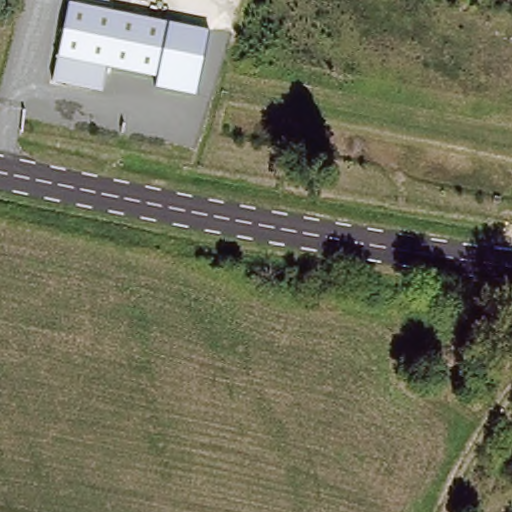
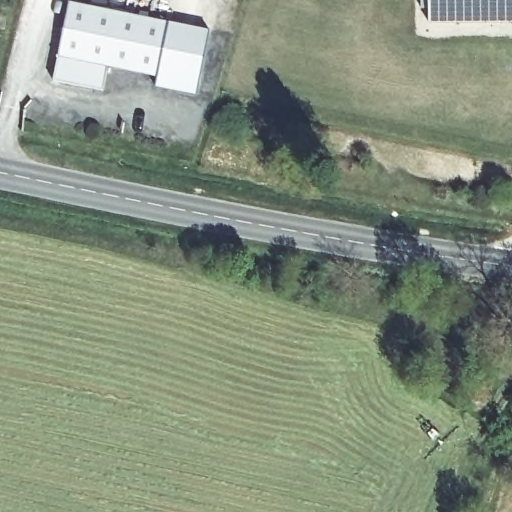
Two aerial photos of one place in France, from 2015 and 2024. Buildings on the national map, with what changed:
new [(512,23),(431,23),(431,0),(512,0),(512,23)]
unchanged [(172,23),(162,75),(131,69),(111,65),(106,89),(57,79),(62,55),(73,1),(144,15),(169,20),(173,21),(172,23)]
unchanged [(209,28),(195,94),(156,86),(158,74),(162,75),(172,23),(173,21),(209,28)]

